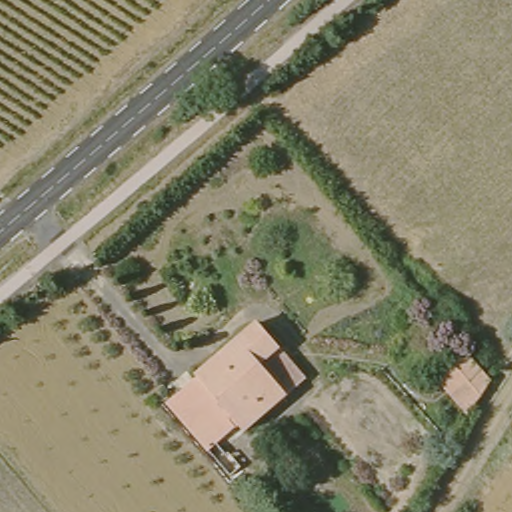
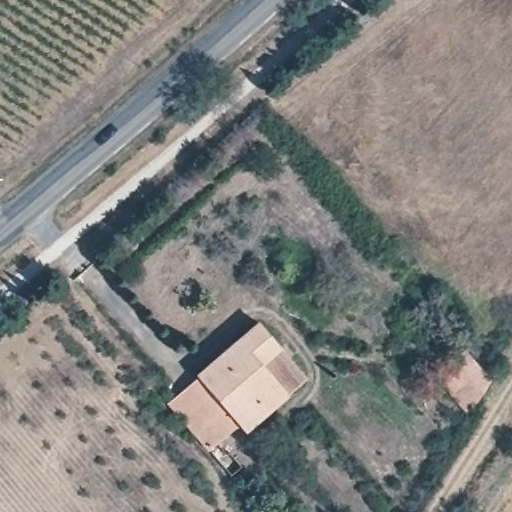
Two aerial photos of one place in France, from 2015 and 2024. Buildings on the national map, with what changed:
unchanged [(230,413),(192,370),(256,315),(301,370),(237,422),(230,413)]
unchanged [(452,362),(485,399),(473,423),(434,378),(452,362)]
unchanged [(199,440),(161,396),(192,370),(230,413),(199,440)]

